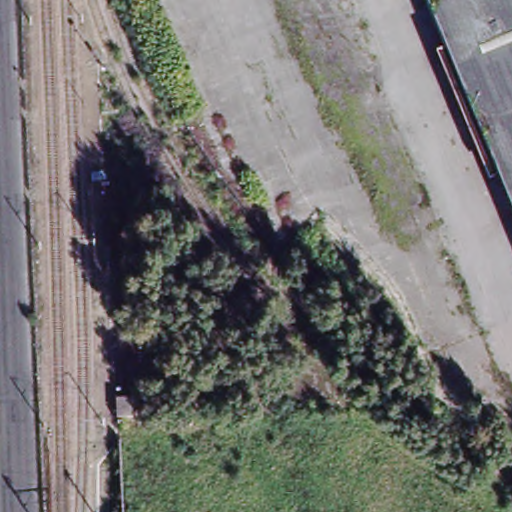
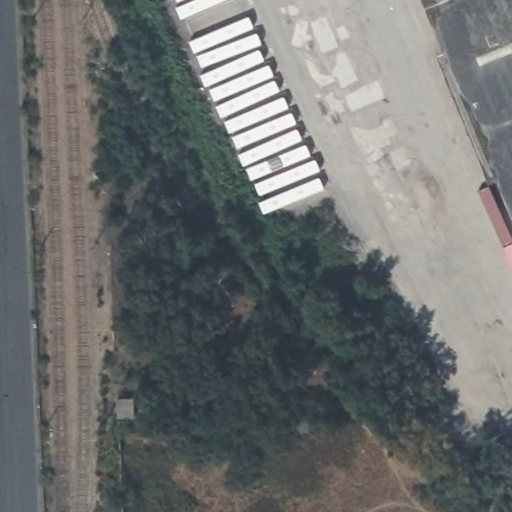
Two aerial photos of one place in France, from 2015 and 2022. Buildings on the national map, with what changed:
unchanged [(512,212),(425,0),(512,0),(512,212)]
unchanged [(138,402),(140,422),(123,423),(123,421),(123,410),(122,402),(138,402)]

